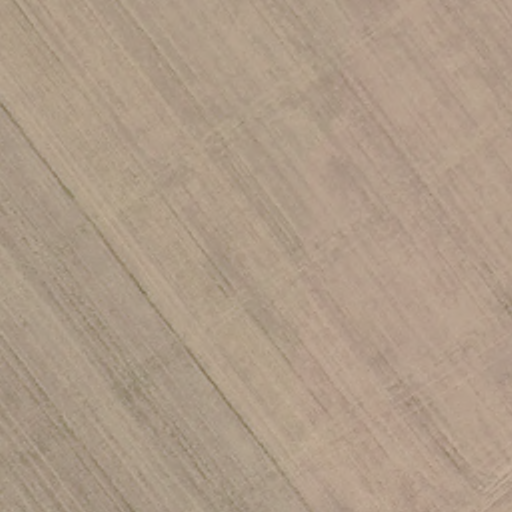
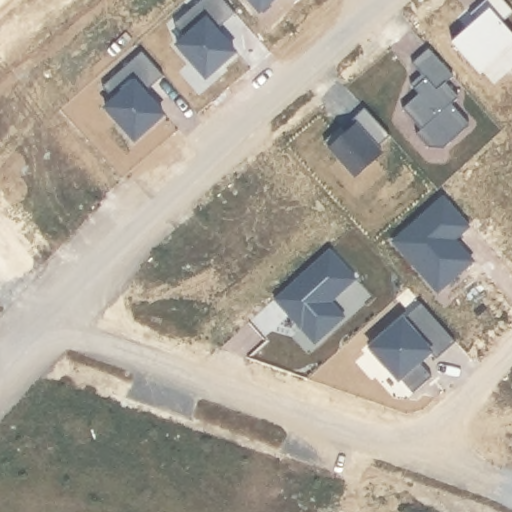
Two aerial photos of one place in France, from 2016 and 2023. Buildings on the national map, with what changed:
new [(470,15),(486,0),(501,0),(512,12),(512,13),(501,24),(512,36),(512,45),(480,75),(452,43),(476,22),(470,15)]
new [(413,90),(410,86),(421,76),(412,65),(428,50),(453,77),(446,84),(458,99),(451,106),(469,126),(442,150),(427,149),(416,135),(420,131),(402,110),(418,95),(413,90)]
new [(341,127),(345,133),(354,126),(351,122),(364,109),(389,137),(377,149),(382,155),(356,178),(324,142),(341,127)]
new [(443,198),(448,204),(469,227),(450,244),(456,250),(459,247),(472,262),(438,293),(394,243),(427,213),(443,198)]
new [(329,251),(356,281),(331,304),(344,318),(314,345),(274,301),(329,251)]
new [(421,304),(456,343),(436,361),(427,351),(416,361),(432,378),(413,395),(388,367),(385,370),(368,351),(421,304)]

